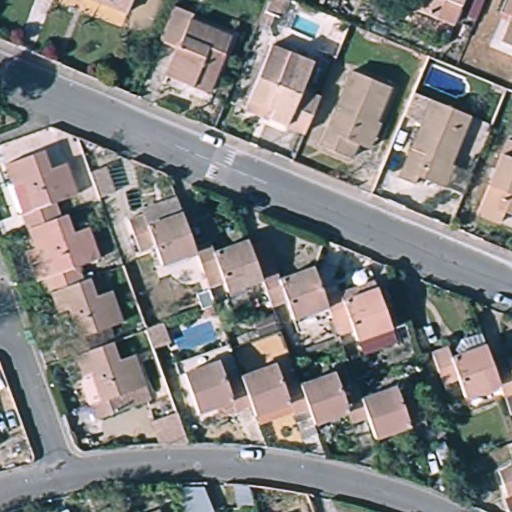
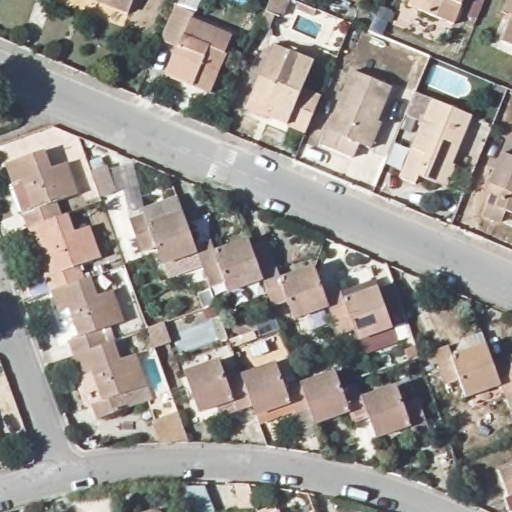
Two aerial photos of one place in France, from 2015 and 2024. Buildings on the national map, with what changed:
unchanged [(86,0),(131,0),(126,15),(86,0)]
unchanged [(263,14),(268,0),(285,0),(277,20),(263,14)]
unchanged [(409,11),(414,0),(464,0),(453,29),(409,11)]
unchanged [(511,0),(512,0),(512,19),(505,16),(511,0)]
unchanged [(192,16),(190,23),(230,39),(206,96),(164,79),(177,49),(160,41),(174,9),(192,16)]
unchanged [(512,24),(512,51),(502,47),(512,24)]
unchanged [(268,41),(264,49),(248,42),(252,34),(268,41)]
unchanged [(309,66),(298,93),(317,101),(301,138),(242,114),(269,50),(309,66)]
unchanged [(370,154),(360,149),(358,148),(352,162),(322,150),(352,76),(391,93),(377,126),(381,128),(370,154)]
unchanged [(443,193),(431,187),(416,181),(413,189),(396,182),(428,105),(466,121),(447,168),(452,171),(443,193)]
unchanged [(501,211),(496,223),(475,215),(505,140),(512,143),(512,216),(501,211)]
unchanged [(23,219),(16,217),(7,192),(12,190),(5,170),(46,155),(52,174),(68,168),(79,200),(61,207),(65,220),(28,234),(23,219)]
unchanged [(115,192),(100,197),(92,172),(107,166),(115,192)]
unchanged [(163,265),(156,246),(141,251),(129,219),(145,213),(144,210),(178,197),(183,212),(196,247),(198,252),(163,265)]
unchanged [(45,283),(38,285),(27,256),(34,253),(28,234),(65,220),(70,219),(76,237),(91,232),(102,263),(83,270),(87,284),(50,297),(45,283)]
unchanged [(267,239),(281,279),(314,267),(324,294),(329,307),(295,319),(289,301),(273,307),(263,280),(250,244),(267,239)]
unchanged [(212,243),(215,253),(249,240),(250,244),(263,280),(229,291),(222,272),(207,278),(198,252),(196,247),(212,243)]
unchanged [(74,362),(68,346),(80,343),(69,314),(58,319),(50,297),(87,284),(93,283),(99,300),(113,296),(124,327),(104,334),(109,349),(74,362)]
unchanged [(324,294),(340,290),(343,300),(378,288),(393,327),(392,330),(397,344),(364,355),(351,321),(336,327),(329,307),(324,294)]
unchanged [(109,349),(116,347),(122,364),(136,360),(147,389),(126,397),(131,412),(96,425),(91,410),(102,407),(92,378),(80,382),(74,362),(109,349)]
unchanged [(500,390),(466,403),(458,383),(445,389),(433,358),(450,351),(454,362),(486,350),(493,370),(500,390)]
unchanged [(237,411),(234,400),(198,413),(184,372),(219,360),(226,380),(242,374),(253,406),(237,411)]
unchanged [(309,408),(294,413),(293,411),(259,423),(253,406),(242,374),(276,362),(282,381),(298,375),(301,384),(309,408)]
unchanged [(511,419),(500,390),(493,370),(512,362),(512,418),(511,419)]
unchanged [(368,418),(353,423),(349,411),(315,423),(309,408),(301,384),(335,372),(341,390),(356,384),(361,398),(368,418)]
unchanged [(361,398),(396,387),(402,403),(417,399),(429,432),(415,437),(410,425),(375,438),(368,418),(361,398)]
unchanged [(183,429),(187,442),(160,443),(152,420),(176,412),(183,429)]
unchanged [(500,471),(512,467),(512,493),(509,494),(500,471)]
unchanged [(159,510),(159,512),(153,512),(159,510)]

